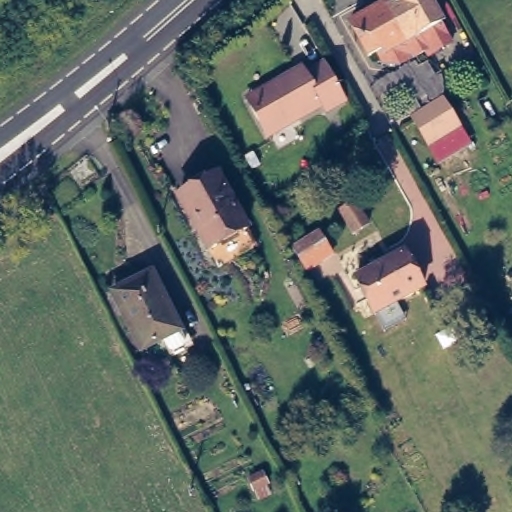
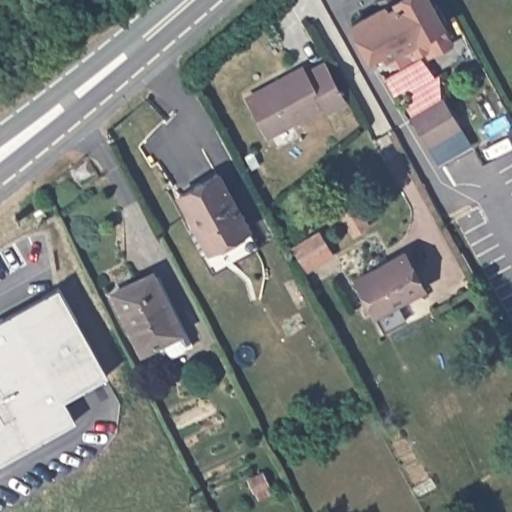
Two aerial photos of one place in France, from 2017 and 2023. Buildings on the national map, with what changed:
unchanged [(385,4),(382,0),(431,0),(452,37),(415,57),(405,41),(385,52),(383,48),(368,56),(351,23),(385,4)]
unchanged [(307,75),(310,80),(329,70),(350,110),(327,122),(325,118),(302,78),(307,75)]
unchanged [(270,146),(253,111),(250,106),(281,89),(302,78),(325,118),(270,146)]
unchanged [(427,144),(410,116),(440,98),(458,127),(427,144)]
unchanged [(207,160),(248,232),(210,252),(169,181),(207,160)]
unchanged [(360,207),(370,229),(356,237),(345,215),(360,207)]
unchanged [(317,229),(330,251),(302,266),(290,244),(317,229)]
unchanged [(354,281),(402,255),(421,289),(372,315),(354,281)]
unchanged [(158,274),(193,344),(167,357),(165,354),(153,361),(118,293),(158,274)]
new [(58,288),(107,374),(65,399),(76,419),(0,463),(0,321),(58,288)]

